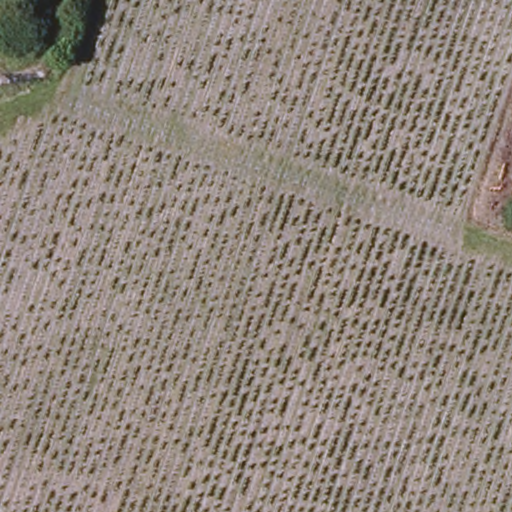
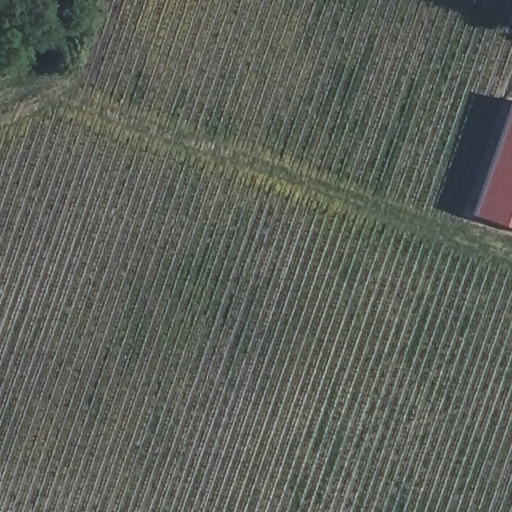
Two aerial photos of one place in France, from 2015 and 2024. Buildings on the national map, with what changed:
new [(512,106),(512,228),(475,215),(512,106)]

